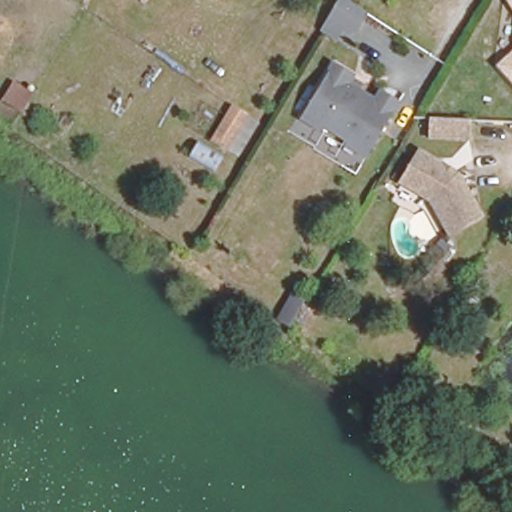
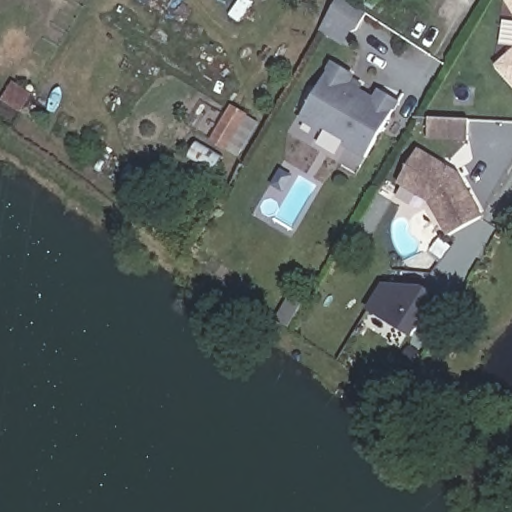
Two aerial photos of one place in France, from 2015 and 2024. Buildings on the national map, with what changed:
unchanged [(373,14),(356,41),(342,35),(337,43),(319,32),(337,0),(346,0),(373,14)]
unchanged [(508,12),(512,8),(512,17),(508,12)]
unchanged [(506,66),(512,60),(512,72),(506,66)]
unchanged [(351,76),(346,84),(373,100),(378,92),(397,103),(363,158),(344,146),(347,142),(320,126),(318,130),(298,118),(332,64),(351,76)]
unchanged [(223,136),(241,104),(258,114),(268,120),(249,152),(240,146),(223,136)]
unchanged [(432,118),(472,120),(471,139),(431,137),(432,118)]
unchanged [(488,212),(455,234),(431,198),(399,179),(419,147),(446,163),(455,168),(460,171),(488,212)]
new [(414,338),(367,310),(382,284),(422,287),(439,297),(414,338)]

